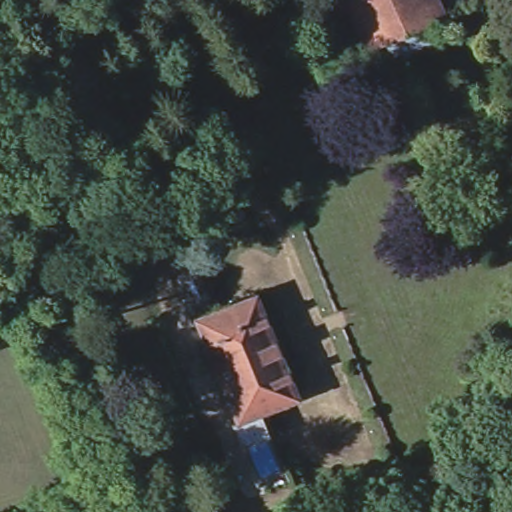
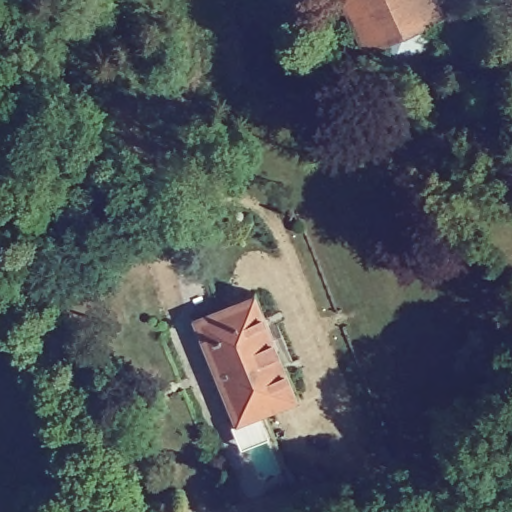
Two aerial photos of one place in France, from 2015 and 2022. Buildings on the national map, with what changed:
unchanged [(387,61),(379,42),(361,50),(338,0),(429,0),(436,15),(415,25),(424,44),(387,61)]
unchanged [(239,444),(230,422),(236,419),(191,315),(253,290),(263,313),(279,306),(284,316),(274,321),(290,357),(298,353),(303,362),(286,370),(296,393),(259,409),(269,431),(239,444)]

